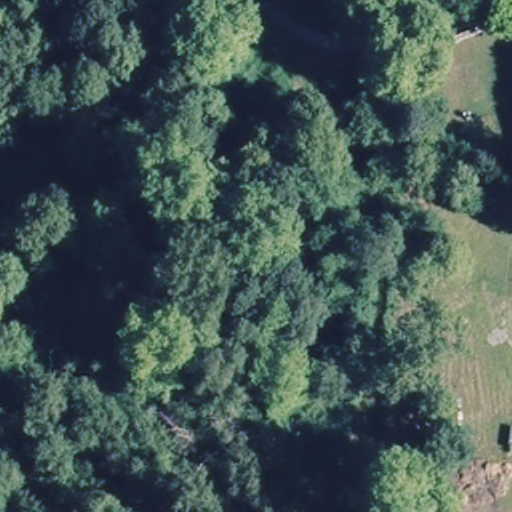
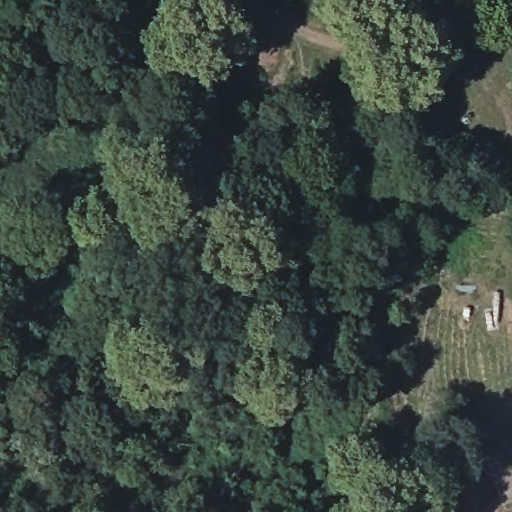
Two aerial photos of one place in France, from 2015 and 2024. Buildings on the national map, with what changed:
unchanged [(462,224),(413,208),(420,192),(469,208),(462,224)]

